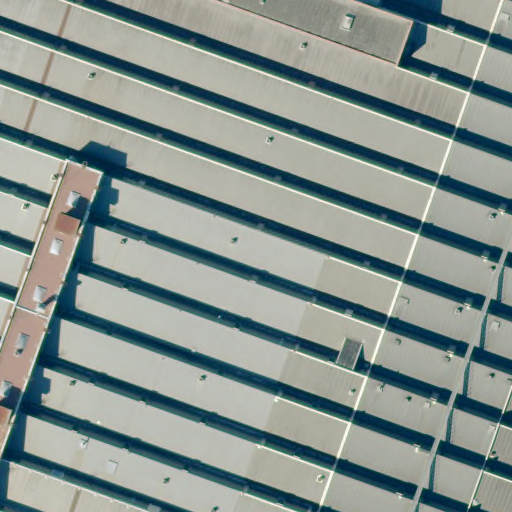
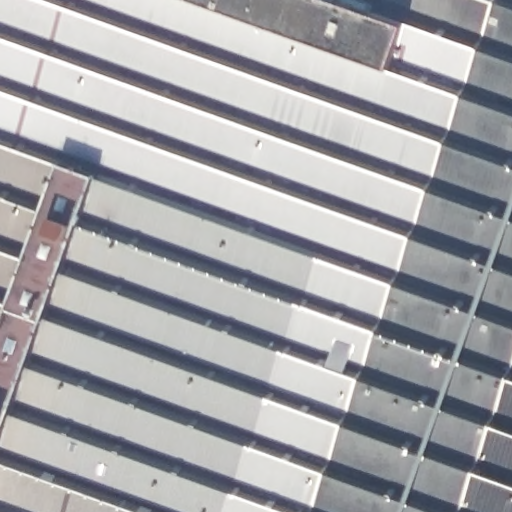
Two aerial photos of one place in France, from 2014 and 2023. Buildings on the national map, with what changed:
unchanged [(512,512),(0,512),(0,0),(512,0),(512,512)]

